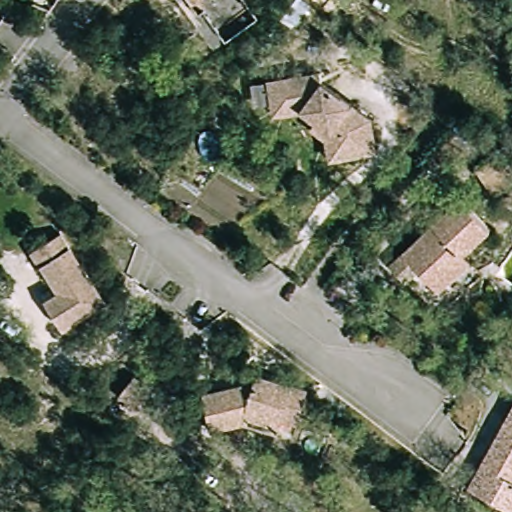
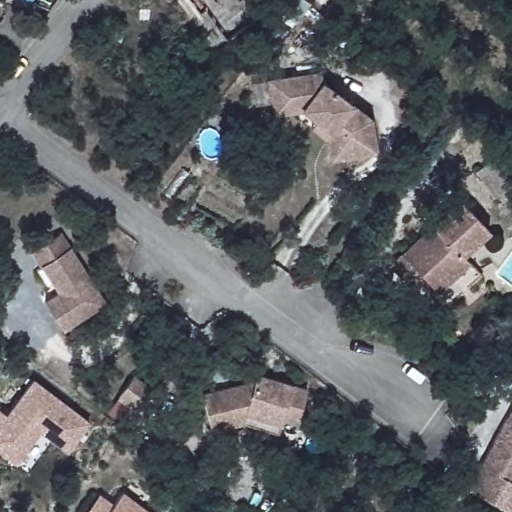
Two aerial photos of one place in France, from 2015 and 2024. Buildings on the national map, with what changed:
new [(226,40),(203,8),(198,12),(189,0),(245,0),(258,17),(226,40)]
demolished [(234,36),(209,4),(202,9),(196,0),(254,0),(264,13),(234,36)]
unchanged [(293,17),(302,25),(289,44),(278,36),(293,17)]
unchanged [(326,135),(311,124),(314,115),(304,108),(274,112),(270,77),(284,76),(322,71),(322,81),(371,117),(375,150),(341,154),(329,156),(326,135)]
unchanged [(476,214),(457,194),(483,171),(501,190),(476,214)]
unchanged [(485,233),(460,257),(468,266),(435,297),(399,257),(456,202),(485,233)]
unchanged [(62,329),(42,297),(52,291),(28,255),(59,234),(104,302),(62,329)]
unchanged [(250,379),(253,370),(304,386),(293,420),(247,405),(241,419),(207,427),(199,390),(250,379)]
new [(5,414),(33,378),(91,422),(67,453),(40,432),(15,463),(0,452),(0,410),(5,414)]
unchanged [(116,425),(100,413),(116,393),(132,406),(116,425)]
unchanged [(512,413),(512,512),(503,512),(466,490),(512,413)]
new [(113,503),(123,492),(150,512),(84,512),(99,492),(113,503)]

